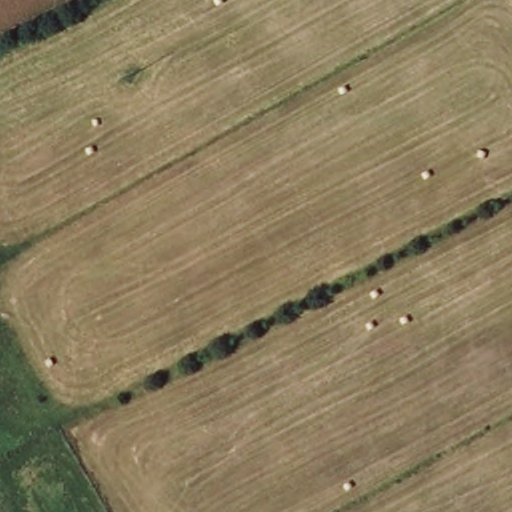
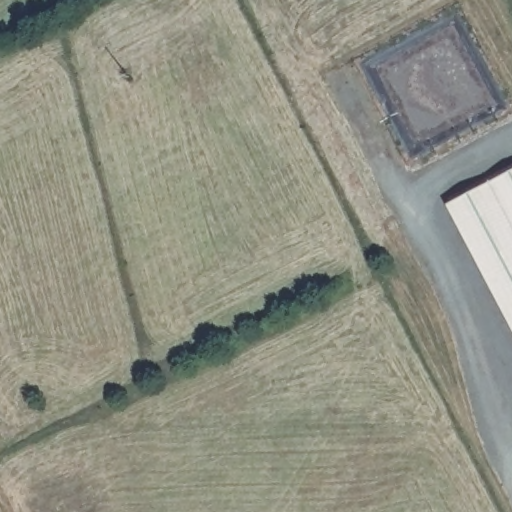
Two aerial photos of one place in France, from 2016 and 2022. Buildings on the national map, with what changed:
new [(512,156),(512,321),(444,193),(512,156)]

